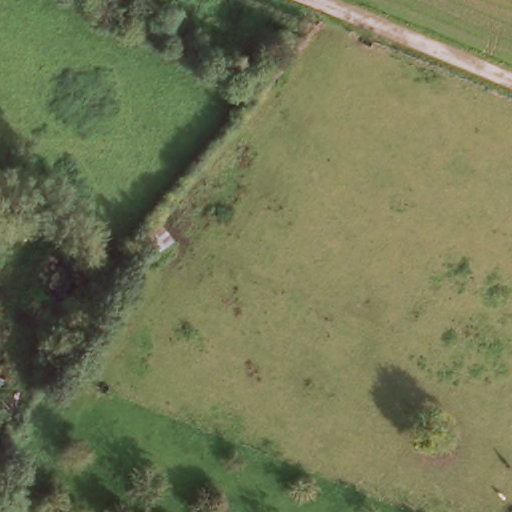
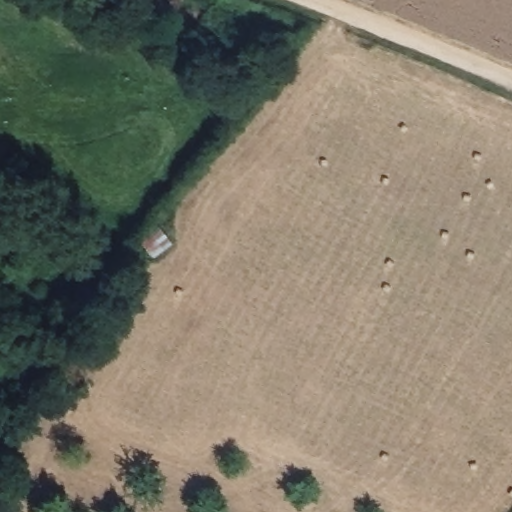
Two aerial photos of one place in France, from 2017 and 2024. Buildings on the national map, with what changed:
[]

